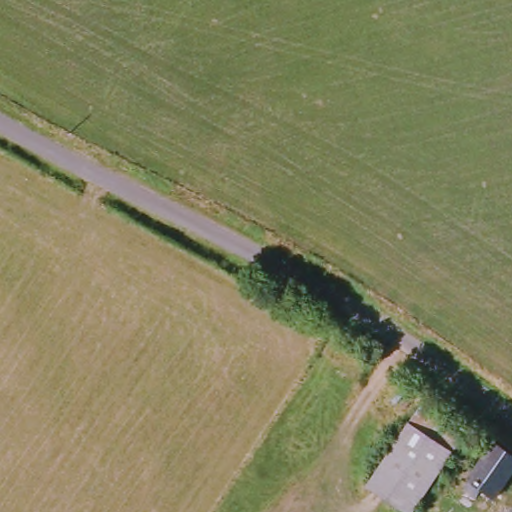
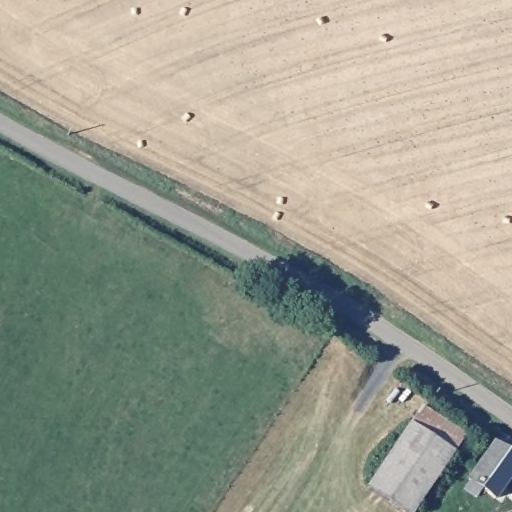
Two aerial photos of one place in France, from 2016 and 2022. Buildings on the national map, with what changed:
unchanged [(410,512),(394,512),(360,490),(411,411),(458,439),(410,512)]
unchanged [(457,485),(491,441),(512,455),(512,467),(486,502),(476,496),(468,506),(452,497),(457,485)]

